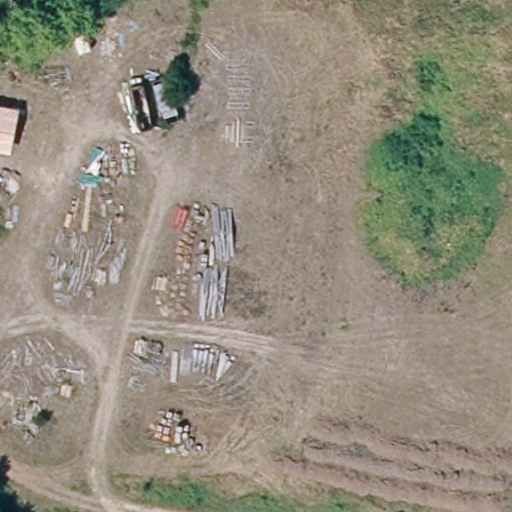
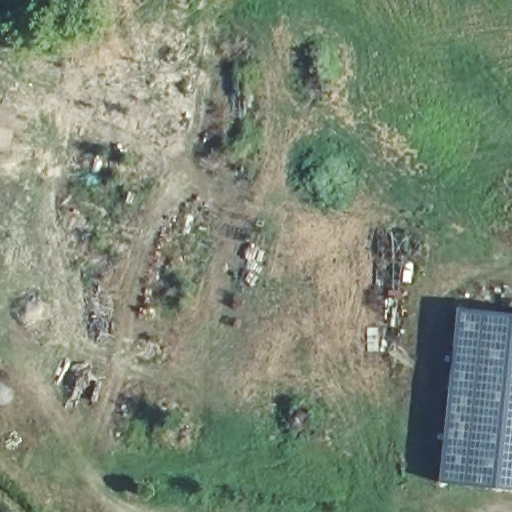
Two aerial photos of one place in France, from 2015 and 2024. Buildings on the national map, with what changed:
unchanged [(0,150),(0,105),(18,108),(7,152),(0,150)]
new [(512,312),(512,490),(443,482),(459,306),(512,312)]

